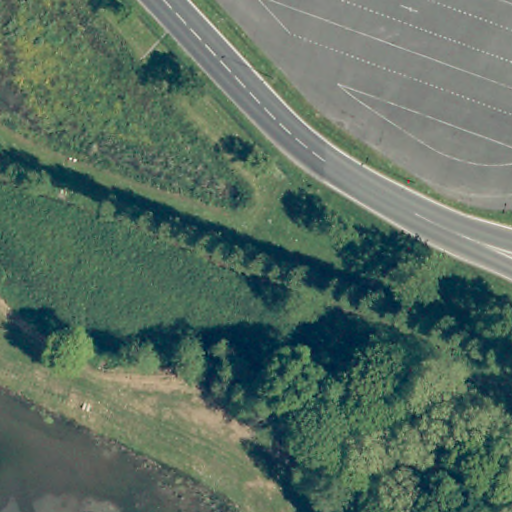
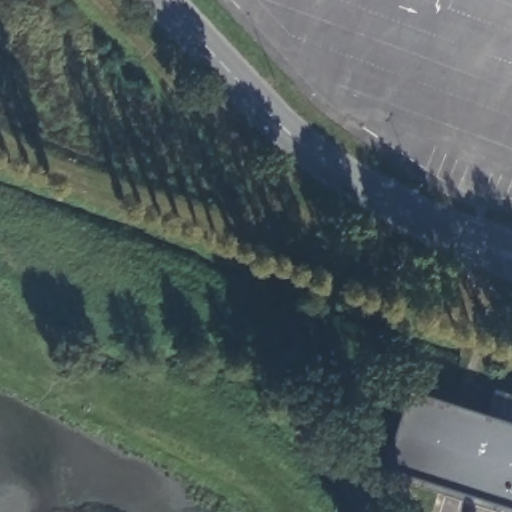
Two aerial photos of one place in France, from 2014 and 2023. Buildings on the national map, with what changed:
new [(491,414),(494,388),(512,394),(512,508),(383,468),(410,389),(491,414)]

